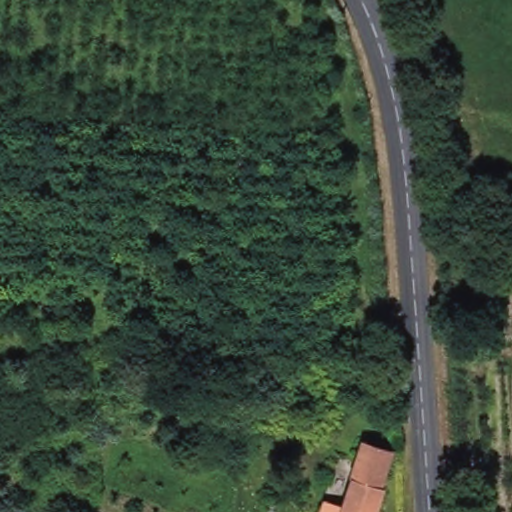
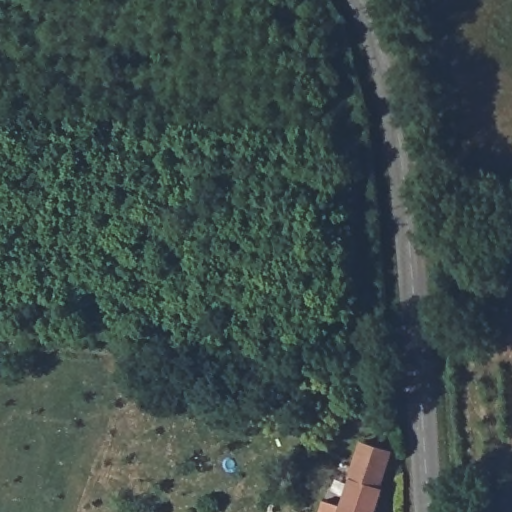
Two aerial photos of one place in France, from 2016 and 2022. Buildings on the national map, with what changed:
unchanged [(323,502),(342,507),(362,439),(394,451),(376,512),(320,512),(323,502)]

